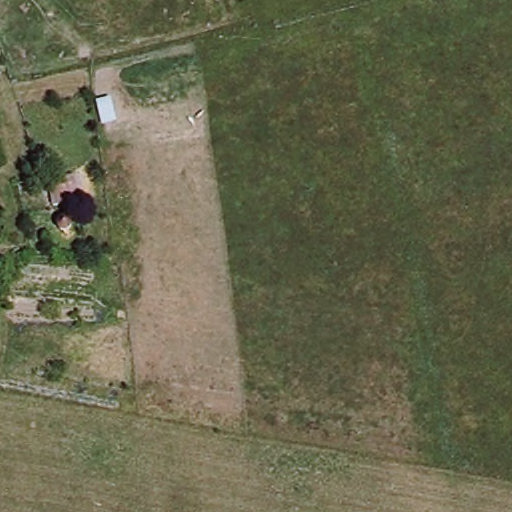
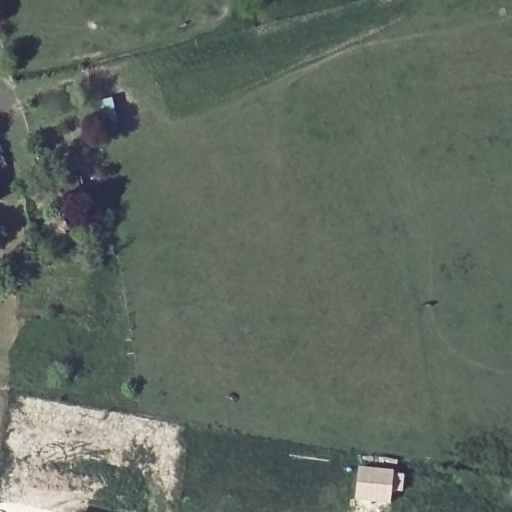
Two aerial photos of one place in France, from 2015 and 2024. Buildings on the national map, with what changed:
new [(358,469),(393,473),(389,502),(355,499),(358,469)]

